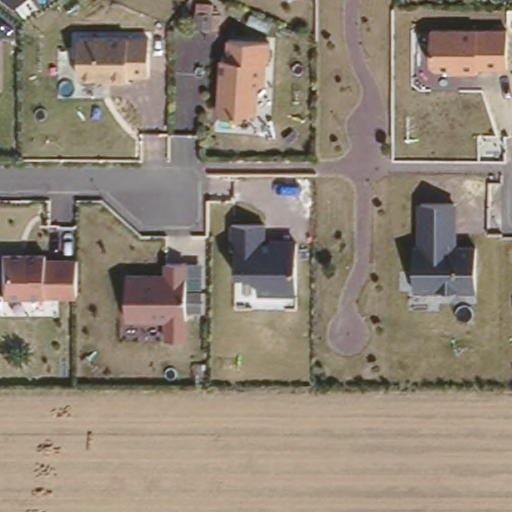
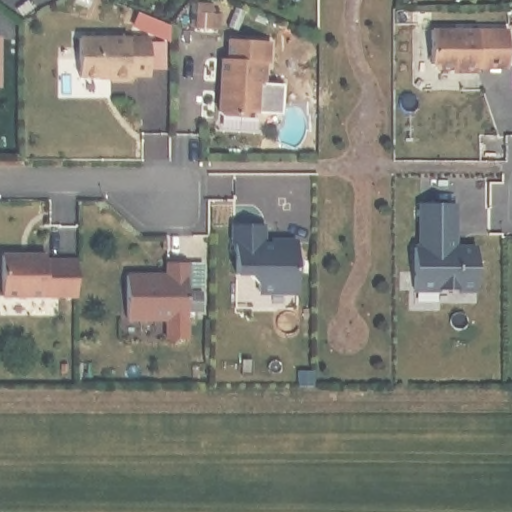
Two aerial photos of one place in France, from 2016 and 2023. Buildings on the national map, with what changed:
unchanged [(504,28),(506,67),(430,70),(431,28),(504,28)]
unchanged [(146,36),(147,75),(131,75),(130,82),(103,83),(102,78),(78,78),(78,36),(146,36)]
unchanged [(225,57),(226,38),(267,41),(266,63),(262,63),(261,83),(257,83),(256,112),(244,111),(244,117),(216,115),(217,57),(225,57)]
unchanged [(477,291),(415,290),(415,204),(457,202),(457,244),(475,244),(477,291)]
unchanged [(258,292),(248,275),(234,274),(235,247),(229,239),(229,222),(266,223),(266,240),(295,241),(295,293),(258,292)]
unchanged [(77,297),(2,296),(2,251),(48,252),(49,258),(77,258),(77,297)]
unchanged [(162,272),(162,260),(187,262),(187,319),(125,319),(126,271),(162,272)]

